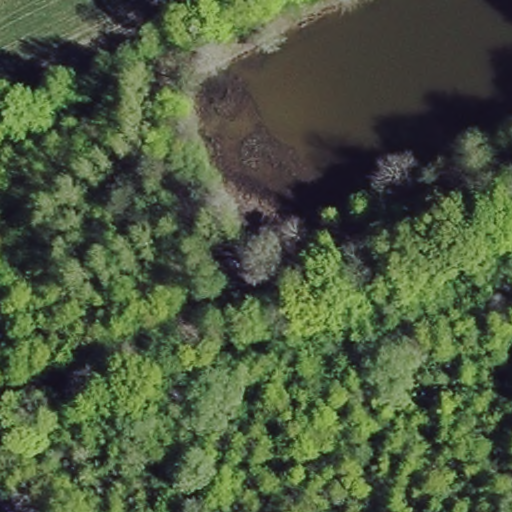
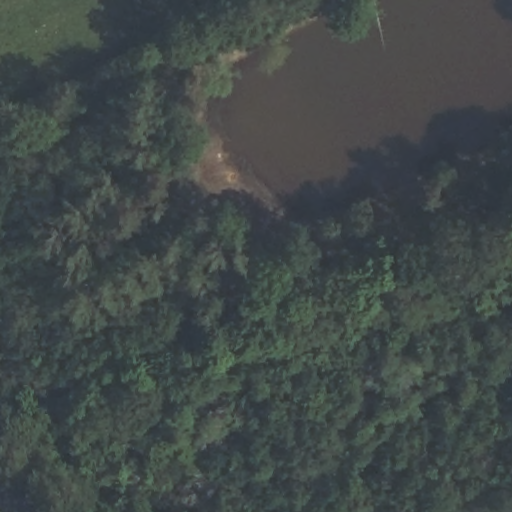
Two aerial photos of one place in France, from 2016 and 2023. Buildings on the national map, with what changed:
unchanged [(241,280),(215,290),(207,269),(230,258),(241,280)]

